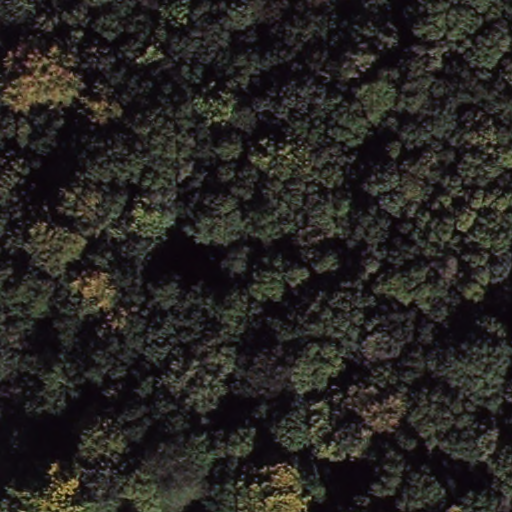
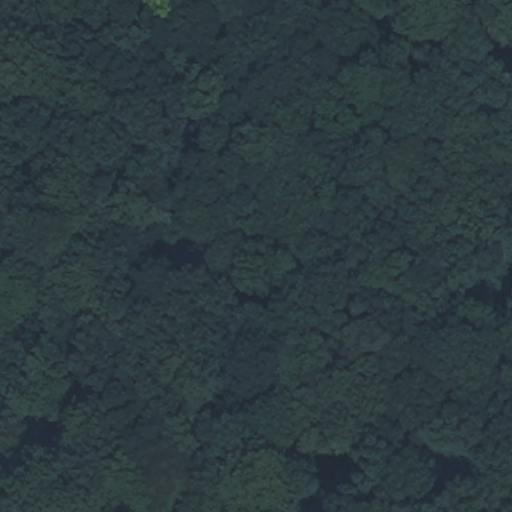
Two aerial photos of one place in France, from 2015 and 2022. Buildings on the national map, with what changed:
[]

